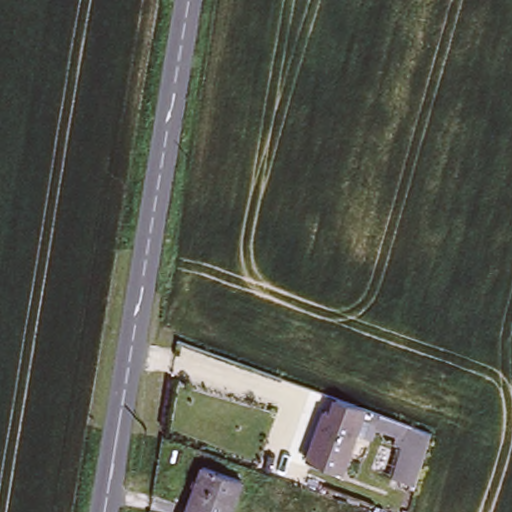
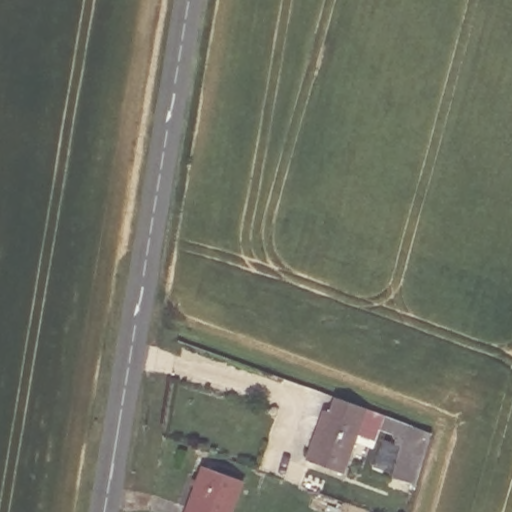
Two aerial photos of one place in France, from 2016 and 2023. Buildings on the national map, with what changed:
unchanged [(340,396),(316,462),(303,457),(326,391),(340,396)]
unchanged [(370,407),(344,473),(316,462),(340,396),(370,407)]
unchanged [(411,423),(431,430),(416,480),(396,475),(411,423)]
unchanged [(229,512),(194,512),(201,490),(193,487),(203,460),(241,473),(229,512)]

